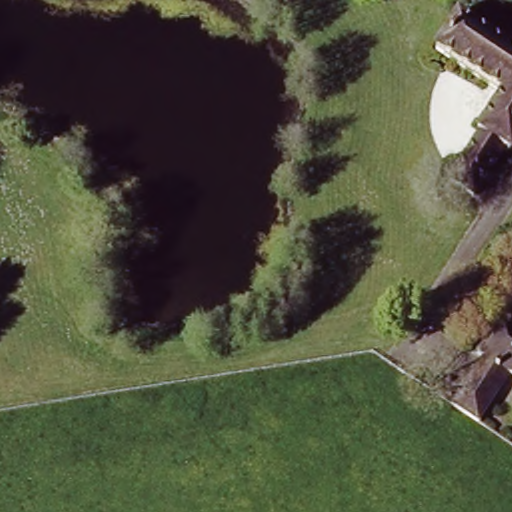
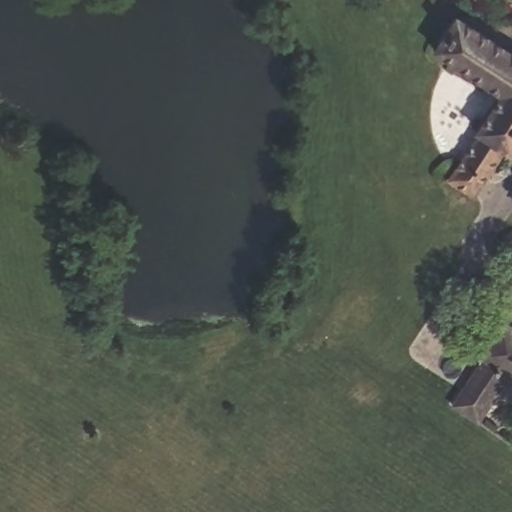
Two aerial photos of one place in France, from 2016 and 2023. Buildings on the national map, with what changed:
unchanged [(478,125),(498,92),(460,68),(436,53),(460,14),(512,47),(512,145),(508,143),(478,192),(452,176),(464,157),(482,128),(478,125)]
unchanged [(478,368),(480,366),(477,364),(501,328),(512,334),(512,384),(505,380),(472,433),(460,424),(447,416),(460,395),(478,368)]

